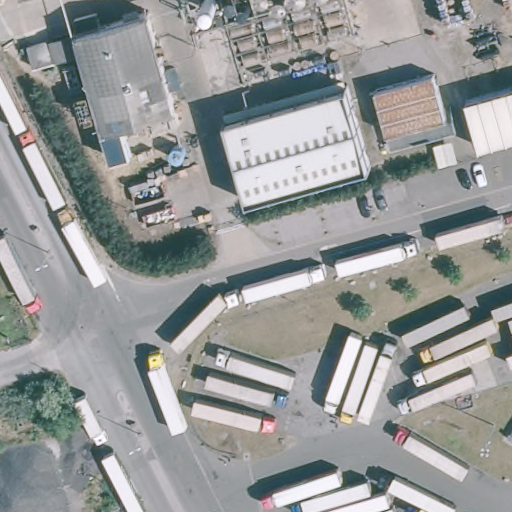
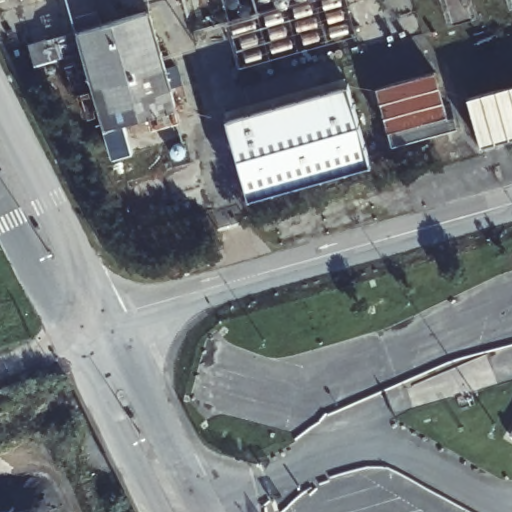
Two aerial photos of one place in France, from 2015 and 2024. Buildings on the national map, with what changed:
unchanged [(145,7),(173,103),(100,125),(71,29),(145,7)]
unchanged [(353,78),(375,156),(255,189),(232,109),(353,78)]
unchanged [(512,80),(512,129),(483,137),(472,91),(512,80)]
unchanged [(437,81),(447,122),(390,136),(379,96),(437,81)]

